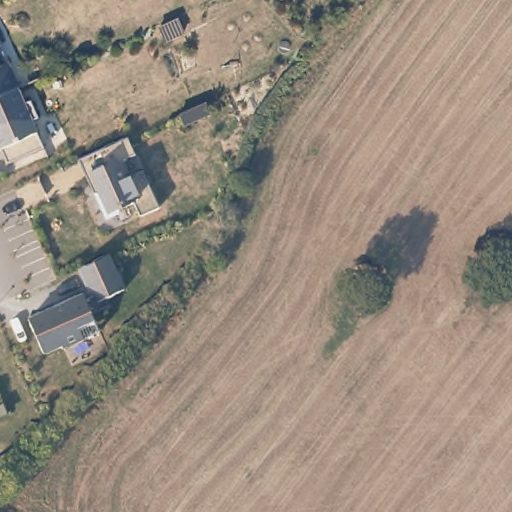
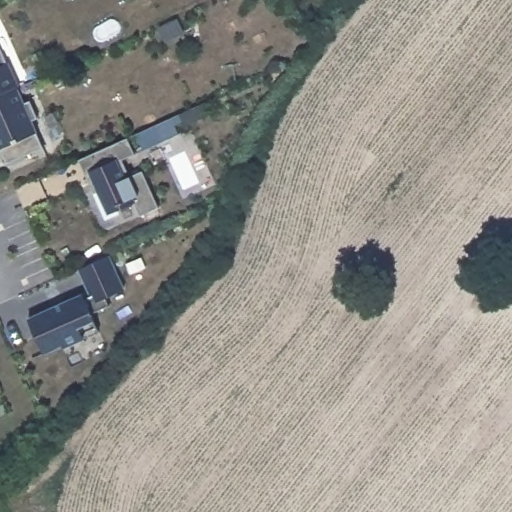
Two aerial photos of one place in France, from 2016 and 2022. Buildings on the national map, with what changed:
unchanged [(2,55),(7,66),(11,65),(22,90),(0,100),(0,47),(4,55),(2,55)]
unchanged [(28,105),(34,102),(44,124),(37,126),(47,150),(11,165),(5,150),(4,150),(0,141),(0,100),(22,90),(28,105)]
unchanged [(100,191),(98,188),(93,190),(78,157),(127,135),(135,152),(122,157),(130,175),(142,169),(158,205),(139,214),(135,204),(110,214),(100,191)]
unchanged [(107,254),(121,287),(104,295),(107,302),(89,311),(92,318),(76,325),(80,336),(62,345),(60,342),(42,350),(37,338),(39,331),(32,327),(27,316),(65,299),(66,301),(82,293),(82,296),(90,293),(78,266),(107,254)]

